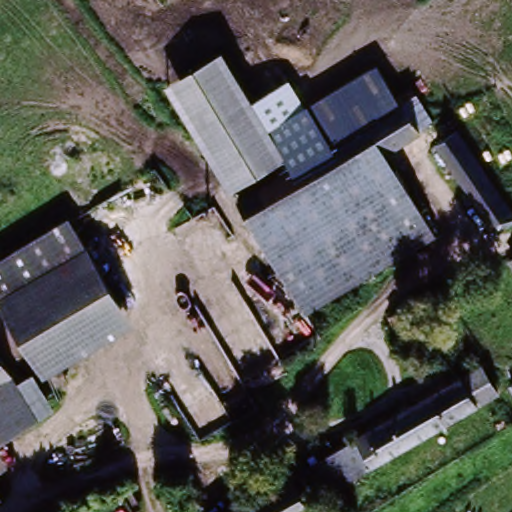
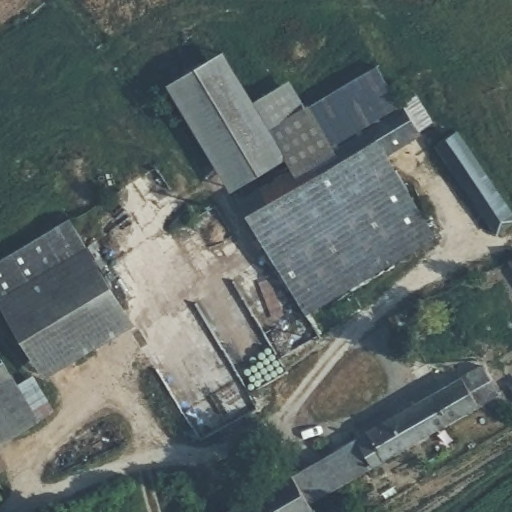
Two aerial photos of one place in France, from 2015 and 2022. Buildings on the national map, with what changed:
unchanged [(289,158),(230,195),(165,84),(220,51),(289,158)]
unchanged [(312,106),(375,67),(400,107),(337,146),(312,106)]
unchanged [(337,146),(400,107),(409,104),(423,94),(437,119),(422,128),(385,150),(256,228),(242,205),(337,146)]
unchanged [(512,224),(512,227),(497,236),(439,146),(455,136),(512,224)]
unchanged [(256,228),(385,150),(439,239),(309,317),(256,228)]
unchanged [(0,309),(0,263),(73,221),(140,325),(41,382),(0,309)]
unchanged [(15,469),(1,478),(7,490),(0,495),(0,354),(24,382),(36,377),(58,416),(2,446),(15,469)]
unchanged [(479,369),(494,396),(382,459),(367,432),(479,369)]
unchanged [(292,475),(367,432),(382,459),(307,501),(292,475)]
unchanged [(307,501),(312,509),(307,512),(227,512),(292,475),(307,501)]

